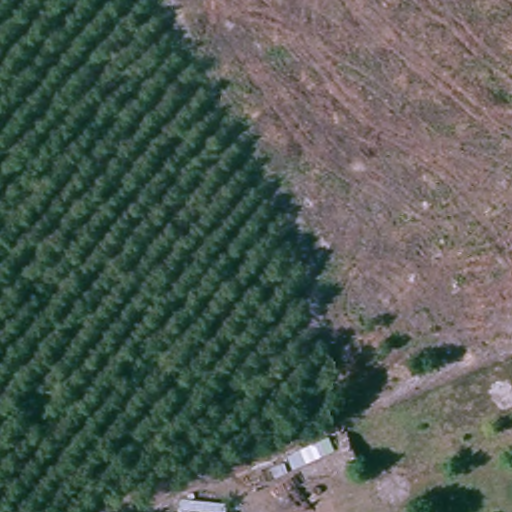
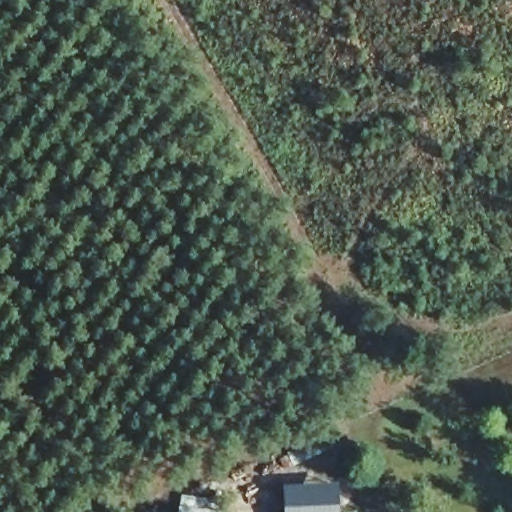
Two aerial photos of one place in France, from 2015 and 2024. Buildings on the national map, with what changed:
new [(339,480),(340,512),(283,512),(281,485),(339,480)]
unchanged [(181,510),(183,496),(219,501),(217,512),(181,512),(181,510)]

